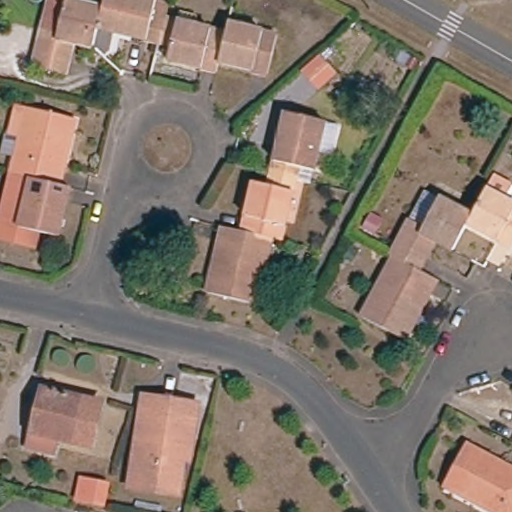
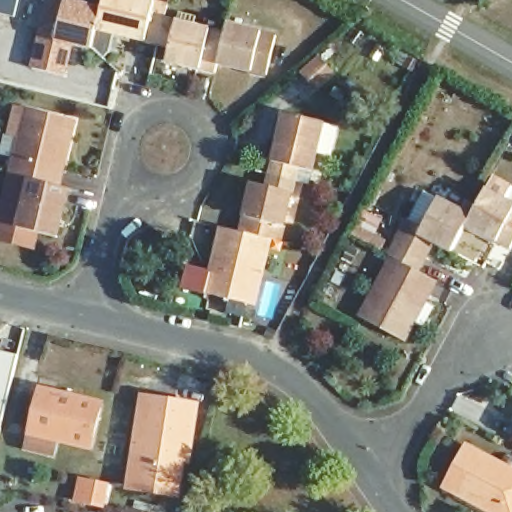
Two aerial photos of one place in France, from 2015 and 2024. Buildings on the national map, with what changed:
unchanged [(156,11),(152,26),(164,29),(158,55),(98,41),(103,20),(108,1),(156,11)]
unchanged [(94,58),(73,54),(66,86),(33,79),(43,39),(50,7),(66,11),(103,20),(98,41),(94,58)]
unchanged [(226,44),(218,75),(216,83),(166,72),(170,58),(158,55),(164,29),(226,44)]
unchanged [(228,35),(277,46),(268,86),(218,75),(226,44),(228,35)]
unchanged [(318,58),(334,76),(318,90),(302,71),(313,61),(317,58),(318,58)]
unchanged [(32,119),(80,130),(65,197),(36,190),(16,186),(32,119)]
unchanged [(280,119),(319,128),(319,129),(334,132),(327,161),(313,158),(308,177),(293,173),(290,184),(266,179),(280,119)]
unchanged [(276,247),(266,245),(236,238),(248,188),(263,192),(266,179),(290,184),(276,247)]
unchanged [(63,247),(24,237),(36,190),(65,197),(74,199),(63,247)]
unchanged [(512,210),(512,256),(468,233),(473,224),(487,197),(512,210)]
unchanged [(419,278),(394,265),(390,263),(409,227),(424,198),(439,206),(473,224),(468,233),(454,259),(435,249),(419,278)]
unchanged [(266,245),(250,310),(201,299),(216,233),(236,238),(266,245)]
unchanged [(406,348),(362,324),(394,265),(419,278),(438,288),(406,348)]
new [(0,428),(0,349),(19,355),(0,428)]
unchanged [(29,450),(33,434),(43,393),(102,408),(92,449),(57,440),(53,456),(29,450)]
unchanged [(130,481),(142,401),(177,406),(176,412),(194,415),(186,465),(180,464),(175,498),(154,495),(128,491),(130,481)]
unchanged [(512,472),(512,512),(491,512),(447,489),(468,450),(512,472)]
unchanged [(110,482),(105,507),(74,501),(80,476),(110,482)]

